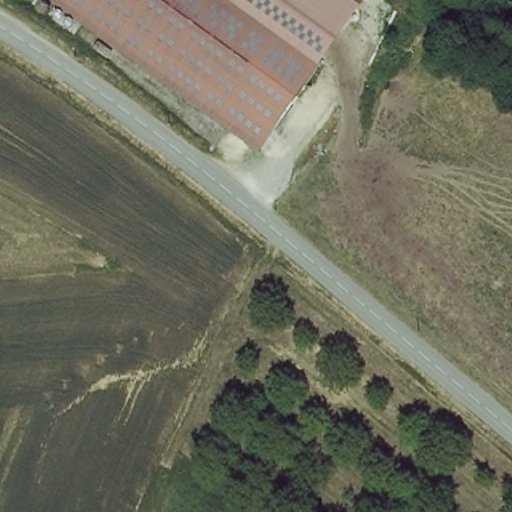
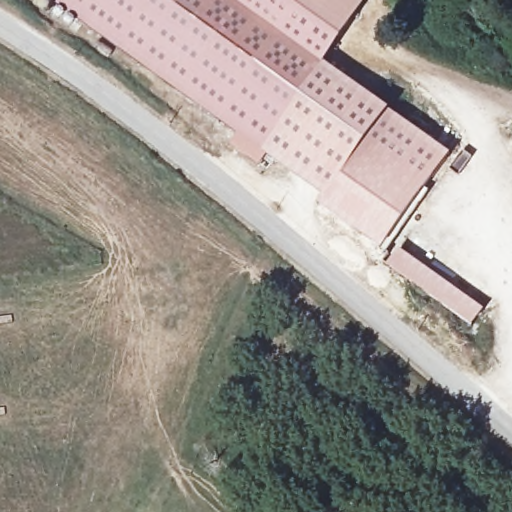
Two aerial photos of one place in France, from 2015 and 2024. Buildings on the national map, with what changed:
unchanged [(370,8),(264,151),(52,0),(358,0),(370,8)]
new [(320,206),(326,197),(263,153),(264,151),(326,67),(392,112),(452,153),(382,250),(320,206)]
new [(392,269),(405,252),(485,310),(472,327),(392,269)]

